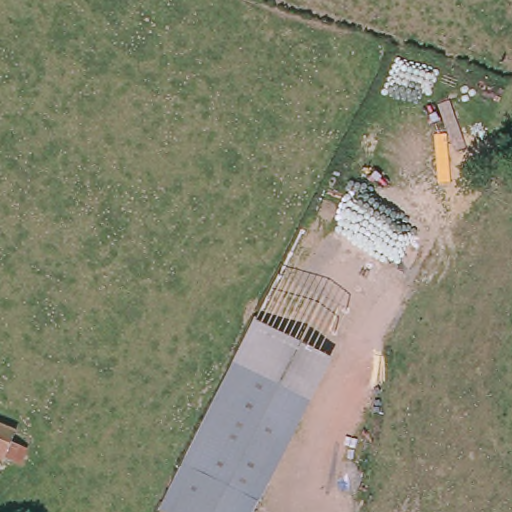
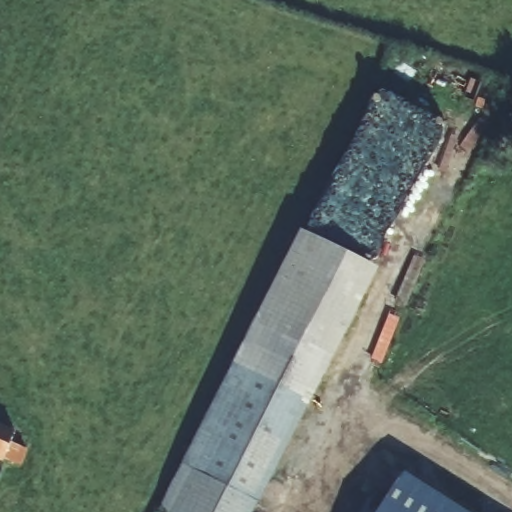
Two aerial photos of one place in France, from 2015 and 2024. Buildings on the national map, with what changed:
new [(301,228),(380,266),(336,356),(259,315),(301,228)]
unchanged [(160,509),(259,315),(336,356),(294,434),(255,512),(167,512),(160,509)]
unchanged [(0,470),(0,432),(14,437),(2,471),(0,470)]
unchanged [(402,473),(462,512),(378,512),(402,473)]

